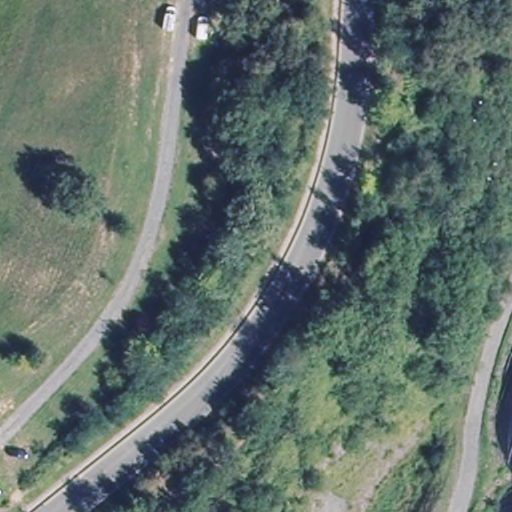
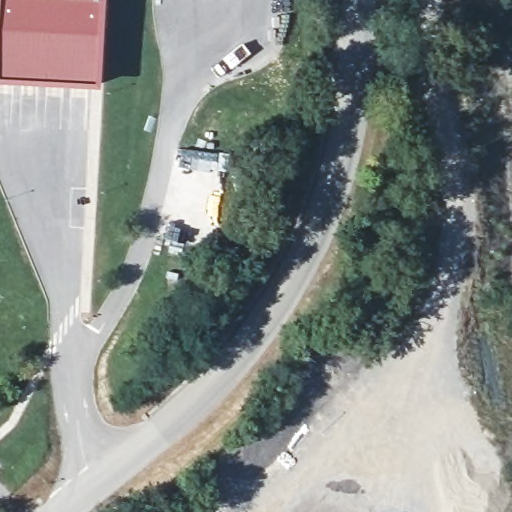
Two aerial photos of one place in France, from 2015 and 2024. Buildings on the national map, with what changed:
new [(0,84),(0,0),(102,0),(96,91),(0,84)]

